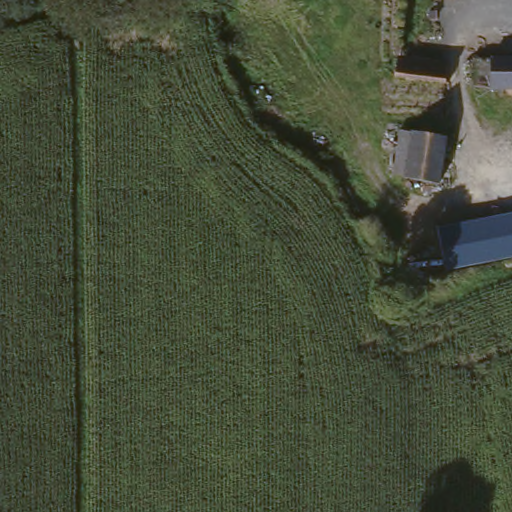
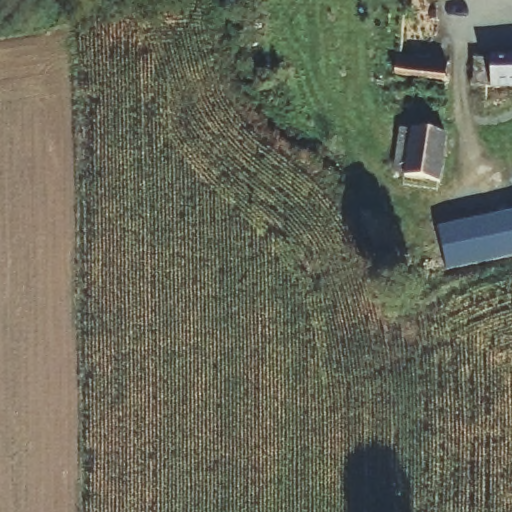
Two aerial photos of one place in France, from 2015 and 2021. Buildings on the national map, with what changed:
unchanged [(512,63),(512,91),(476,91),(477,62),(512,63)]
unchanged [(444,66),(444,87),(397,84),(397,64),(444,66)]
unchanged [(399,184),(400,181),(389,179),(396,141),(407,142),(408,138),(418,140),(422,122),(444,125),(441,144),(431,190),(399,184)]
unchanged [(442,225),(512,211),(512,251),(452,262),(442,225)]

